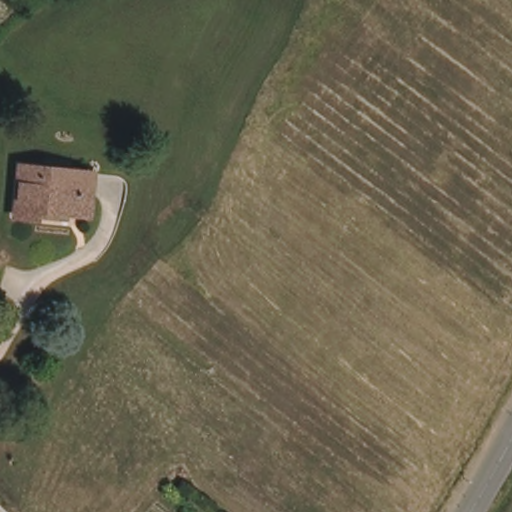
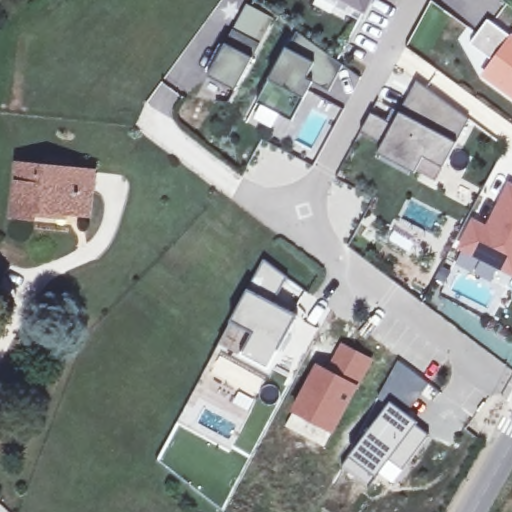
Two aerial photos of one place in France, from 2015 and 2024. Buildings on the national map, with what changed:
new [(366,10),(357,6),(346,0),(371,0),(366,10)]
new [(235,90),(210,75),(248,6),(274,20),(235,90)]
new [(512,37),(512,94),(485,74),(495,61),(471,44),(488,20),(512,37)]
new [(313,82),(305,99),(292,122),(259,102),(298,32),(343,65),(330,91),(313,82)]
new [(417,171),(415,173),(378,153),(383,144),(367,136),(361,133),(371,112),(378,116),(393,124),(417,81),(470,119),(444,168),(437,181),(417,171)]
unchanged [(36,213),(35,221),(13,220),(19,170),(90,178),(86,218),(36,213)]
new [(474,221),(488,228),(510,184),(512,185),(512,276),(460,250),(474,221)]
new [(273,305),(295,318),(270,367),(245,354),(256,332),(233,322),(249,293),(265,262),(287,278),(273,305)]
new [(357,387),(334,430),(326,446),(287,425),(294,412),(319,367),(331,373),(344,347),(370,361),(357,387)]
new [(398,360),(429,382),(410,408),(391,393),(385,401),(378,396),(398,360)]
new [(390,401),(417,422),(379,473),(368,486),(341,465),(390,401)]
new [(417,422),(430,434),(393,484),(379,473),(417,422)]

